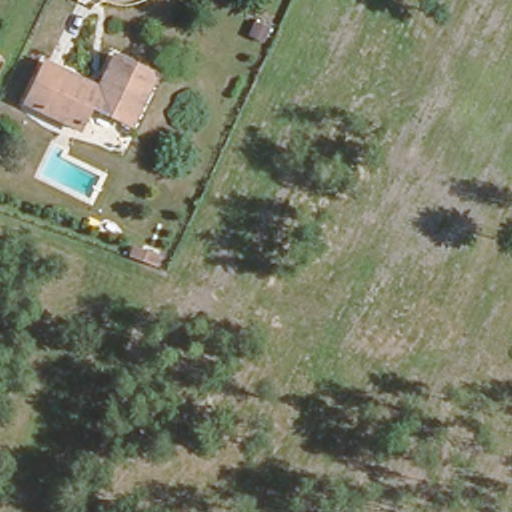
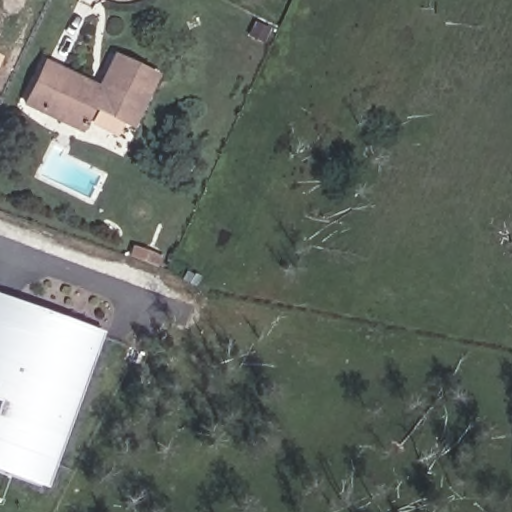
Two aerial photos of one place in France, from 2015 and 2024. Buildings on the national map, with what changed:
unchanged [(82,102),(71,126),(18,99),(38,57),(93,83),(109,53),(130,64),(106,114),(82,102)]
unchanged [(148,72),(124,122),(106,114),(130,64),(148,72)]
new [(102,332),(44,488),(0,472),(0,296),(102,332)]

